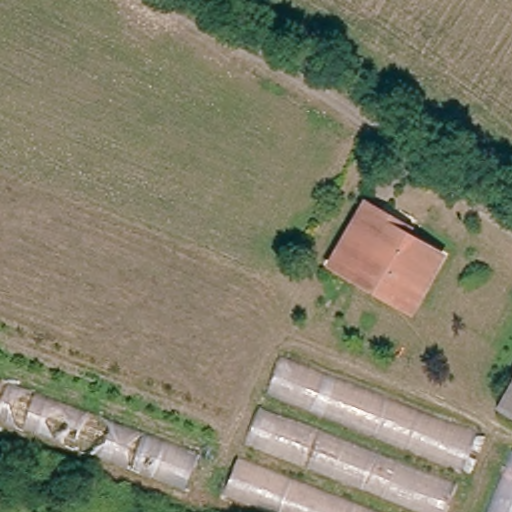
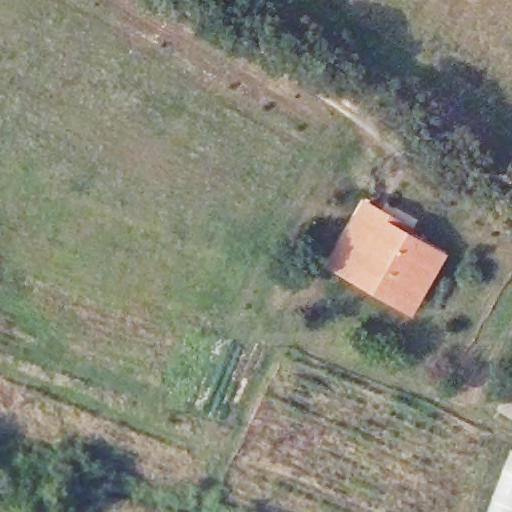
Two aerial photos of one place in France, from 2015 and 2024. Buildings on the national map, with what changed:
unchanged [(363,265),(355,278),(332,265),(372,198),(419,227),(413,237),(446,257),(419,301),(363,265)]
unchanged [(413,315),(355,278),(363,265),(419,301),(413,315)]
demolished [(265,392),(279,357),(479,437),(464,470),(265,392)]
demolished [(0,380),(202,456),(188,490),(0,420),(0,380)]
unchanged [(512,386),(512,421),(497,412),(512,386)]
demolished [(263,410),(458,487),(449,512),(422,512),(250,440),(263,410)]
demolished [(242,462),(379,512),(273,512),(225,493),(242,462)]
unchanged [(494,512),(512,473),(512,512),(494,512)]

